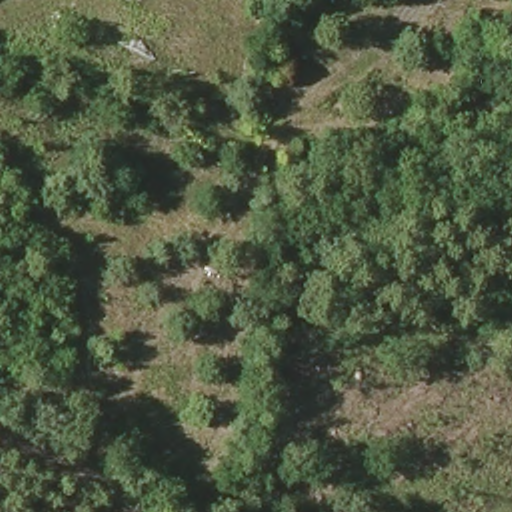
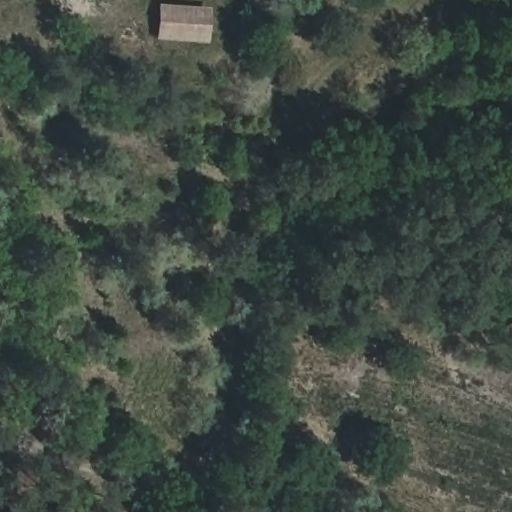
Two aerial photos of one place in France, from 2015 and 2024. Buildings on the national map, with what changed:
new [(208,42),(155,39),(157,5),(210,7),(208,42)]

